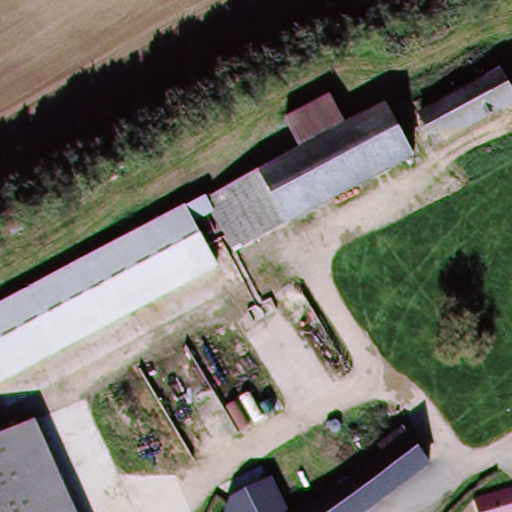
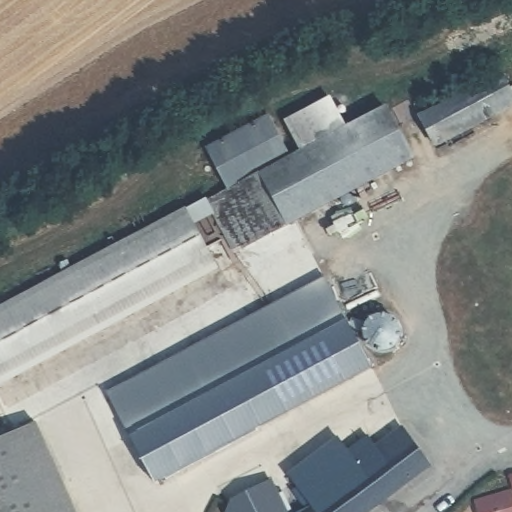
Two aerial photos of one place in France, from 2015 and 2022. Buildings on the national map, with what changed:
unchanged [(502,83),(512,103),(512,113),(432,155),(417,125),(502,83)]
unchanged [(284,123),(330,99),(347,131),(300,155),(284,123)]
unchanged [(385,110),(412,161),(287,227),(286,226),(260,176),(300,155),(347,131),(385,110)]
unchanged [(230,255),(205,205),(260,176),(286,226),(230,255)]
unchanged [(209,267),(0,375),(0,312),(182,216),(209,267)]
new [(347,319),(374,369),(156,484),(132,437),(109,393),(324,277),(347,319)]
new [(393,317),(397,321),(402,334),(400,345),(391,351),(377,354),(370,350),(363,340),(362,329),(365,323),(372,316),(384,315),(393,317)]
unchanged [(59,512),(0,512),(0,448),(25,437),(59,512)]
unchanged [(426,478),(382,512),(309,512),(401,444),(426,478)]
unchanged [(224,512),(222,507),(272,479),(289,512),(224,512)]
unchanged [(512,495),(512,512),(476,512),(473,500),(510,490),(512,495)]

